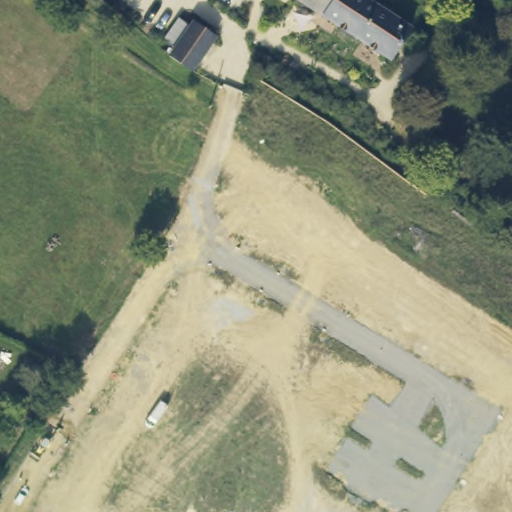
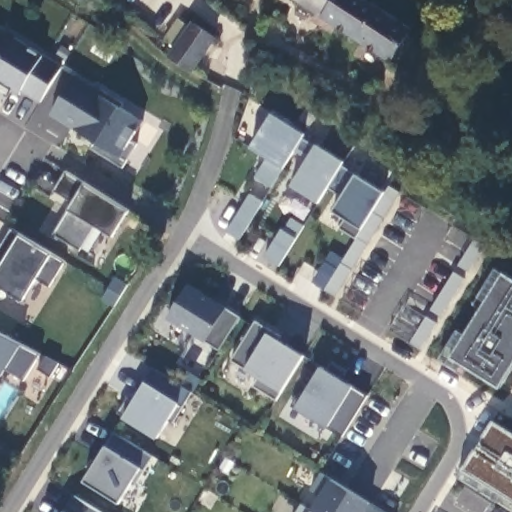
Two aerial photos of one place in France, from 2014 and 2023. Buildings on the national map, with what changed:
unchanged [(389,61),(295,0),(365,0),(410,29),(389,61)]
unchanged [(220,31),(199,66),(175,51),(197,16),(220,31)]
new [(63,66),(40,104),(22,92),(19,96),(0,83),(0,27),(63,66)]
new [(92,149),(95,142),(51,116),(75,76),(100,92),(106,91),(124,103),(121,108),(143,123),(131,141),(137,144),(122,168),(92,149)]
new [(325,290),(356,240),(339,230),(345,220),(332,212),(343,195),(329,186),(318,205),(290,187),(310,155),(297,148),(284,170),(272,188),(255,178),(267,159),(251,149),(272,113),(305,135),(303,138),(315,146),(316,144),(345,161),(343,165),(357,174),(385,192),(389,186),(400,193),(335,297),(325,290)]
new [(86,184),(129,211),(113,237),(95,226),(79,251),(55,235),(69,210),(74,203),(55,191),(67,173),(86,184)]
new [(249,196),(262,204),(240,239),(227,231),(249,196)]
new [(282,229),(284,230),(292,218),(305,226),(279,266),(265,257),(282,229)]
new [(49,287),(37,278),(23,301),(1,287),(0,289),(0,249),(12,230),(21,236),(52,254),(64,262),(49,287)]
new [(467,252),(476,238),(487,245),(471,271),(460,264),(467,252)]
new [(464,377),(438,361),(457,331),(464,335),(481,308),(485,302),(478,298),(496,269),(503,273),(512,278),(512,368),(499,391),(468,371),(464,377)]
new [(456,270),(467,277),(443,315),(432,309),(456,270)]
new [(205,342),(168,319),(189,285),(226,307),(240,317),(219,350),(205,342)]
new [(428,315),(439,322),(422,349),(411,342),(428,315)]
new [(284,340),(284,343),(305,356),(282,393),(276,400),(254,386),(259,378),(245,369),(232,361),(256,322),(284,340)]
new [(23,381),(6,372),(2,377),(0,376),(0,332),(21,344),(38,355),(23,381)]
new [(341,437),(329,427),(327,429),(296,409),(322,368),(352,386),(367,396),(341,437)]
unchanged [(122,419),(126,414),(119,412),(127,398),(134,400),(145,381),(154,369),(181,385),(189,372),(201,379),(192,393),(172,424),(167,420),(157,440),(122,419)]
new [(512,502),(461,472),(493,421),(512,432),(512,502)]
unchanged [(135,485),(132,482),(119,504),(84,482),(106,447),(114,432),(153,456),(135,485)]
new [(312,511),(319,496),(309,489),(319,472),(331,479),(371,503),(384,512),(315,512),(312,511)]
unchanged [(74,496),(100,512),(64,512),(74,496)]
new [(301,504),(312,511),(315,512),(297,512),(301,504)]

